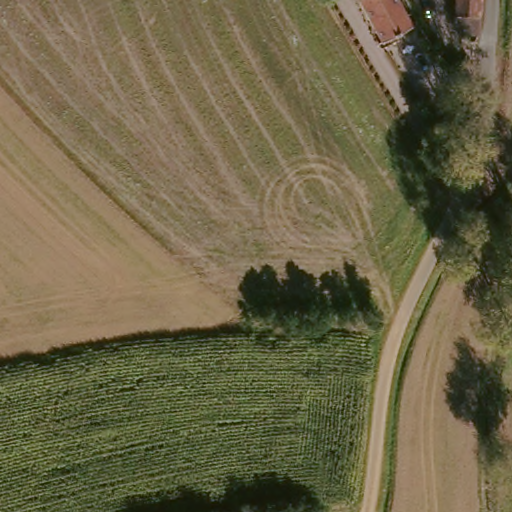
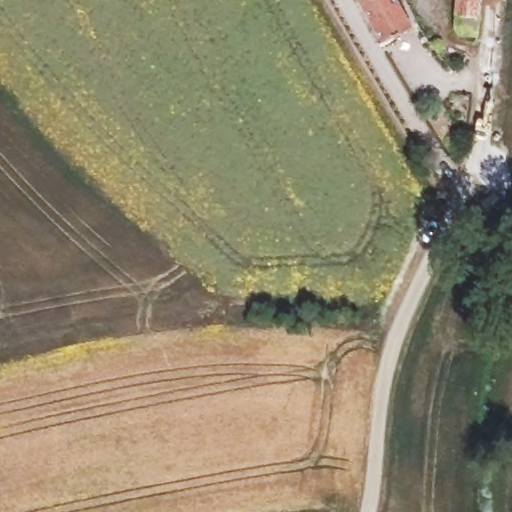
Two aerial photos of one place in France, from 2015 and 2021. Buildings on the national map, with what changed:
unchanged [(380,34),(358,0),(392,0),(405,20),(380,34)]
unchanged [(454,38),(455,20),(446,20),(447,3),(455,3),(455,0),(476,0),(474,38),(454,38)]

